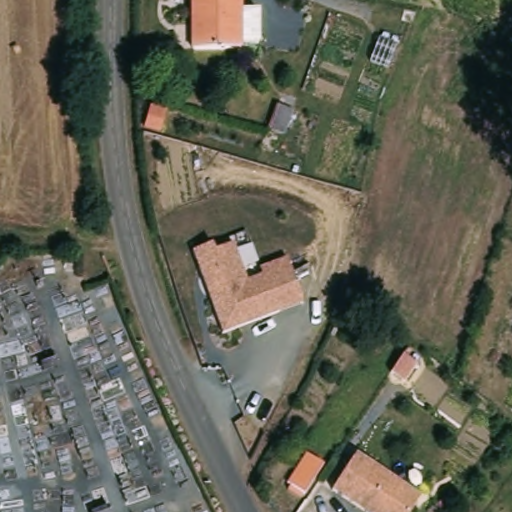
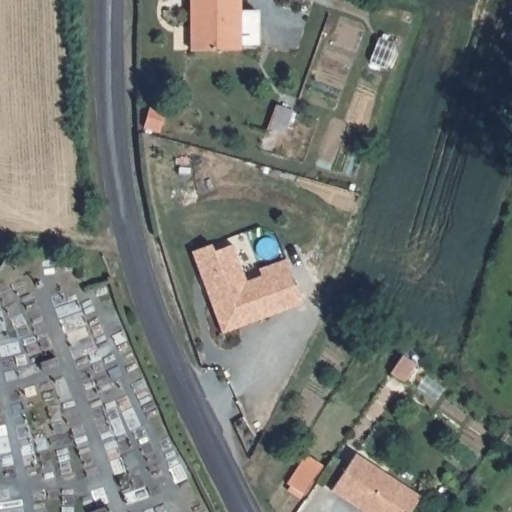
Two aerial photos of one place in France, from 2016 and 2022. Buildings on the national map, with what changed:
unchanged [(193,55),(193,0),(240,0),(240,53),(193,55)]
unchanged [(211,244),(214,250),(232,243),(246,280),(261,273),(260,268),(286,259),(301,304),(223,331),(193,252),(211,244)]
unchanged [(316,492),(345,453),(406,497),(396,512),(345,512),(316,492)]
unchanged [(278,494),(298,465),(311,475),(291,503),(278,494)]

